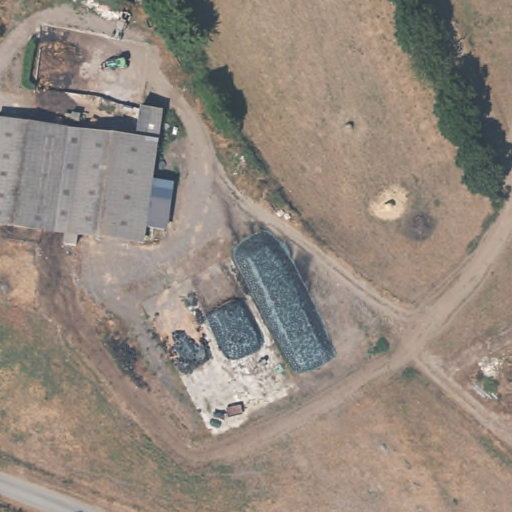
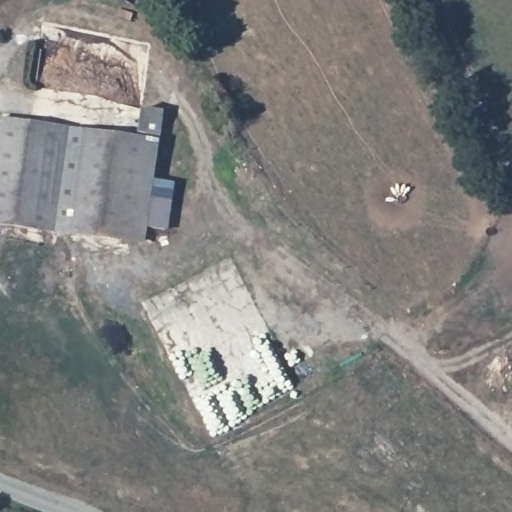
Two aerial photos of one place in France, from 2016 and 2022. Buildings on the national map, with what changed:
unchanged [(0,227),(0,119),(133,137),(137,106),(161,110),(156,141),(145,246),(0,227)]

